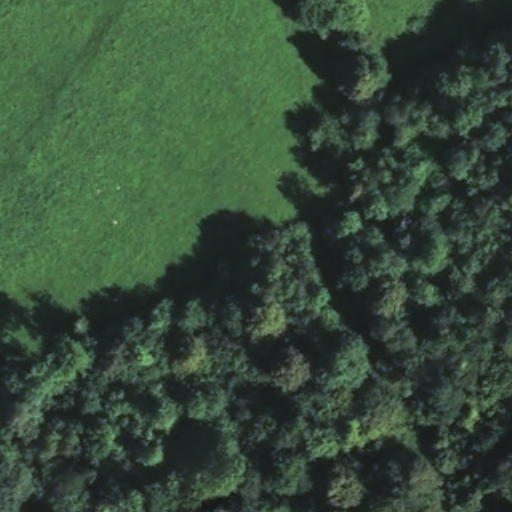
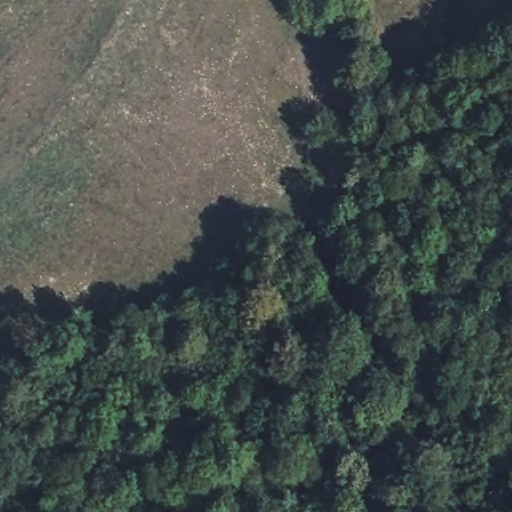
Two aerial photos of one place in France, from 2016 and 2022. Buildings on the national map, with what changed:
[]

